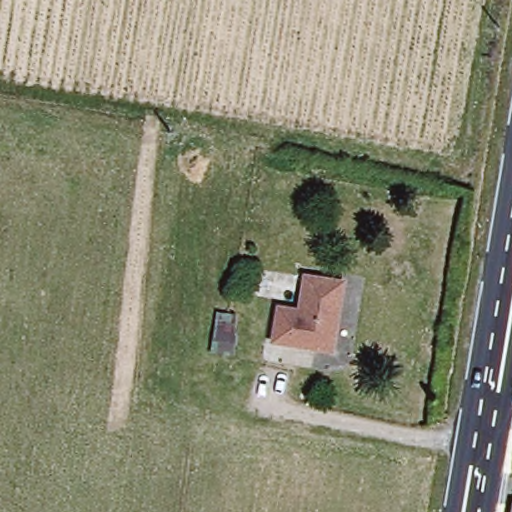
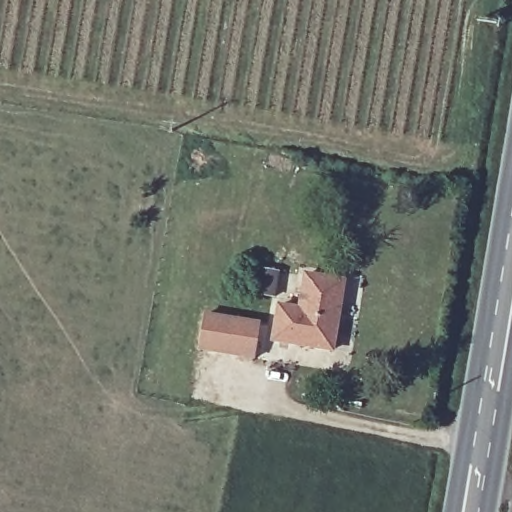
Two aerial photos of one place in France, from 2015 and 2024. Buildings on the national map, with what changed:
unchanged [(347,282),(332,349),(276,337),(285,301),(298,304),(307,271),(347,282)]
new [(261,321),(254,361),(197,352),(203,312),(261,321)]

